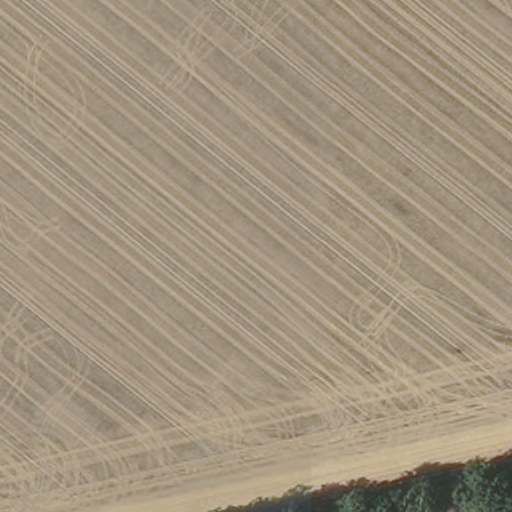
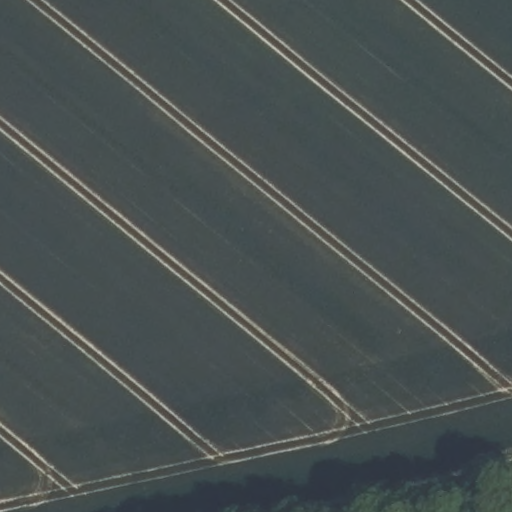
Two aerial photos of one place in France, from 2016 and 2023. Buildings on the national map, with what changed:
[]

